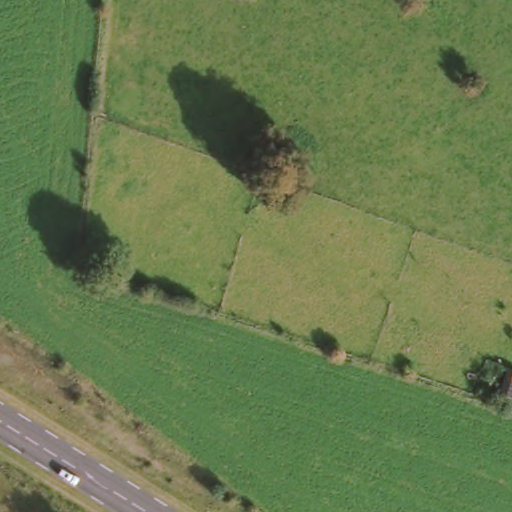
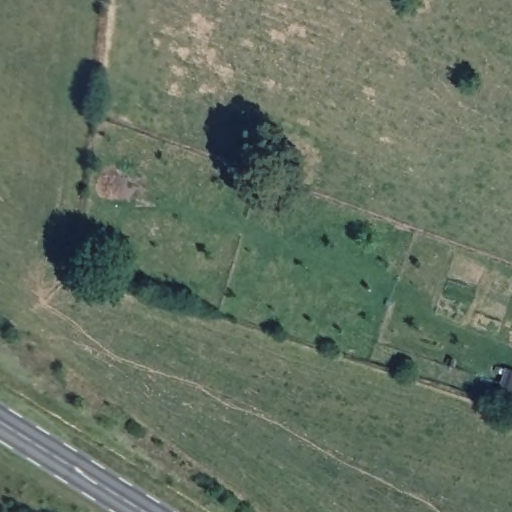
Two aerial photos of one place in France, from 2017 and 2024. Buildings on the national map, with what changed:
unchanged [(512,396),(510,402),(497,397),(504,373),(512,376),(512,396)]

